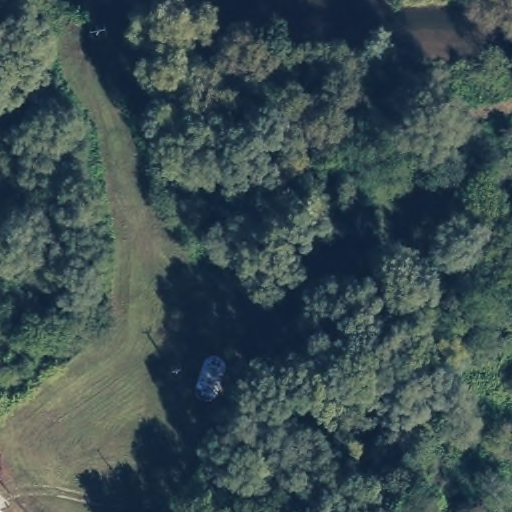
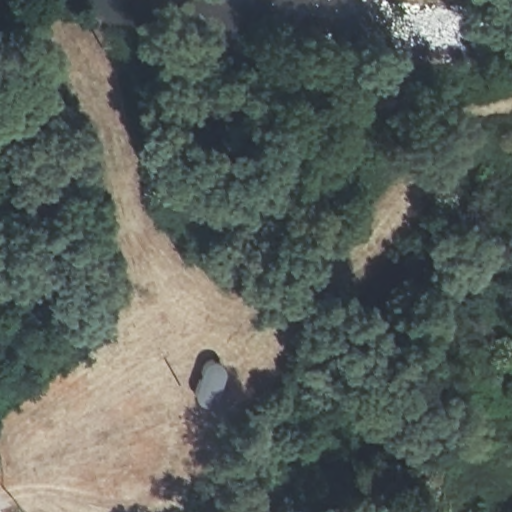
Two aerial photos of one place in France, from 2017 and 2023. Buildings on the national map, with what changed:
unchanged [(205,361),(212,357),(223,357),(230,367),(215,406),(201,407),(195,400),(195,390),(205,361)]

